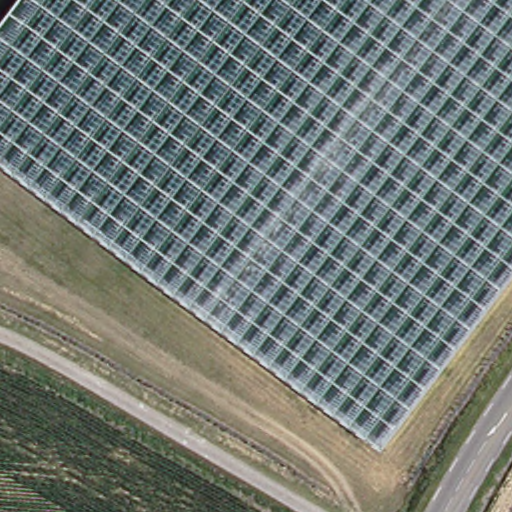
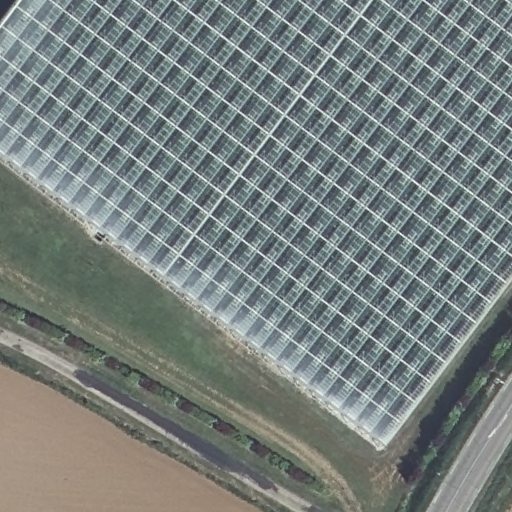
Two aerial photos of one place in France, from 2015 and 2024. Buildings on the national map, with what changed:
unchanged [(512,0),(512,273),(382,444),(0,158),(0,19),(14,0),(512,0)]

